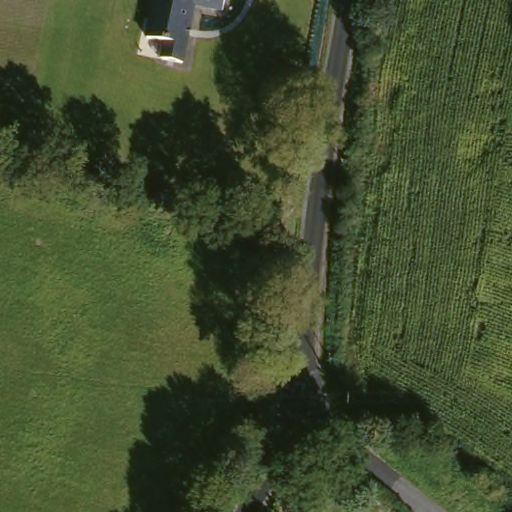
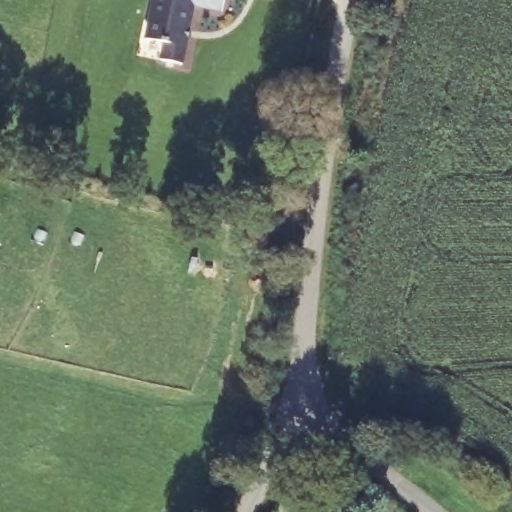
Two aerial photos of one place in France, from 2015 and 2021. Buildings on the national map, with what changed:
unchanged [(222,16),(195,9),(180,68),(160,63),(164,47),(143,42),(153,0),(225,0),(222,16)]

